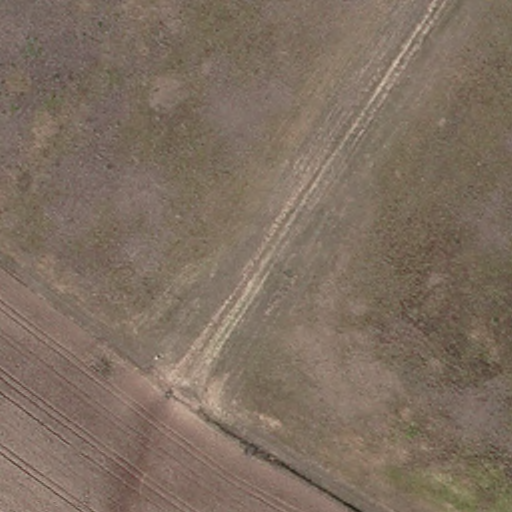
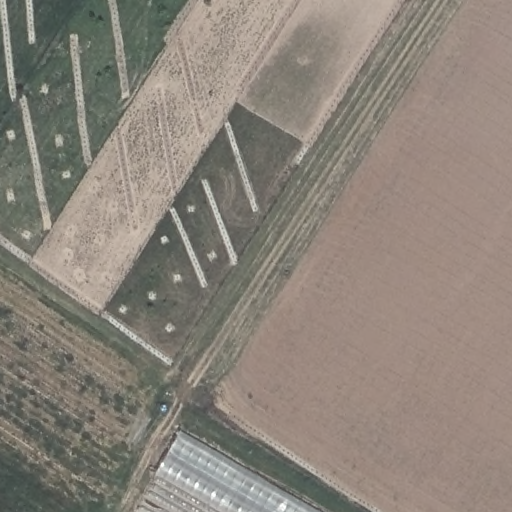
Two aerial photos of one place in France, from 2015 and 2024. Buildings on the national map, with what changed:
new [(315,512),(219,512),(157,476),(180,433),(315,512)]

